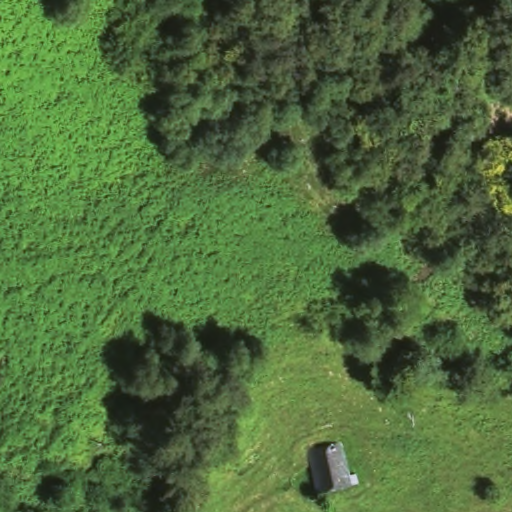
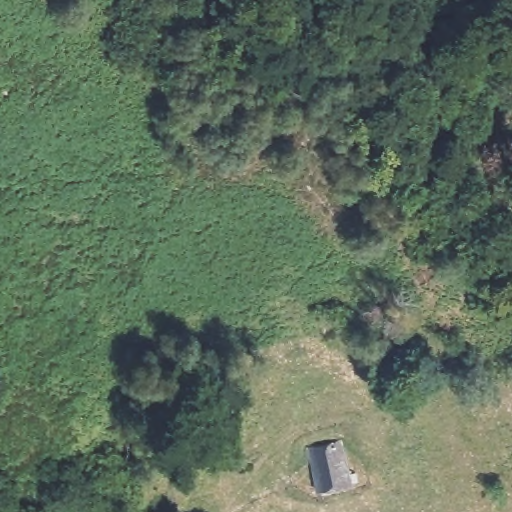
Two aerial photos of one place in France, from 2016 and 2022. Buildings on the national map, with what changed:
unchanged [(349,505),(332,508),(310,512),(302,458),(341,452),(349,505)]

